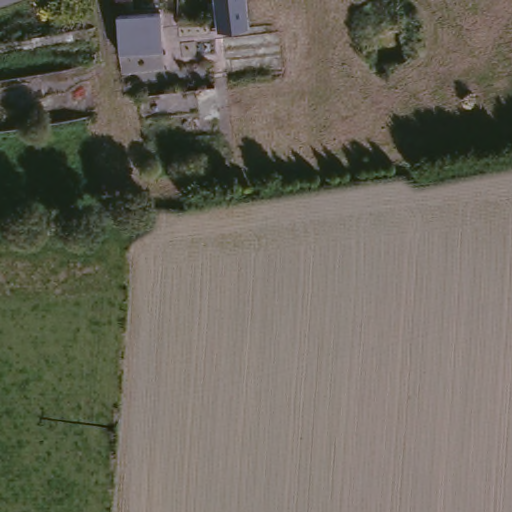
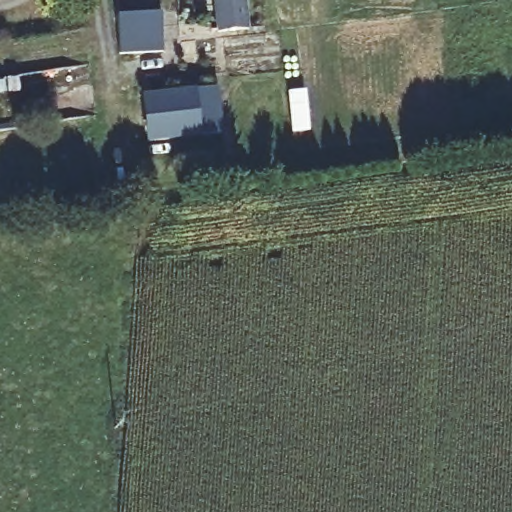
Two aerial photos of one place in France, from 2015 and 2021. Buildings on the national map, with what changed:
unchanged [(113,0),(122,0),(113,1),(113,0)]
unchanged [(243,0),(247,34),(216,35),(212,0),(243,0)]
unchanged [(119,56),(118,15),(132,13),(159,11),(162,52),(119,56)]
new [(199,134),(200,138),(146,143),(141,95),(194,89),(218,87),(222,134),(199,134)]

